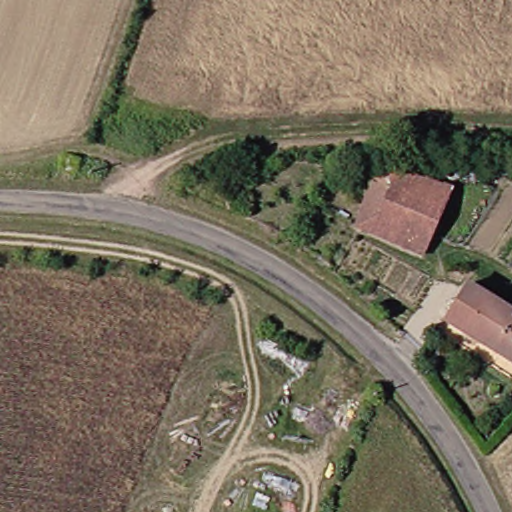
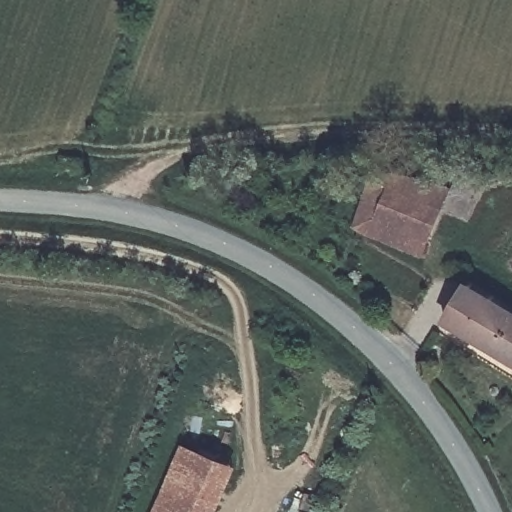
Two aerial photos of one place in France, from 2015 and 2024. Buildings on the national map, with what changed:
unchanged [(450,194),(436,251),(360,226),(375,170),(450,194)]
unchanged [(512,309),(512,363),(439,316),(466,278),(512,309)]
new [(237,467),(217,512),(165,512),(156,508),(182,443),(237,467)]
new [(165,512),(154,512),(156,508),(165,512)]

